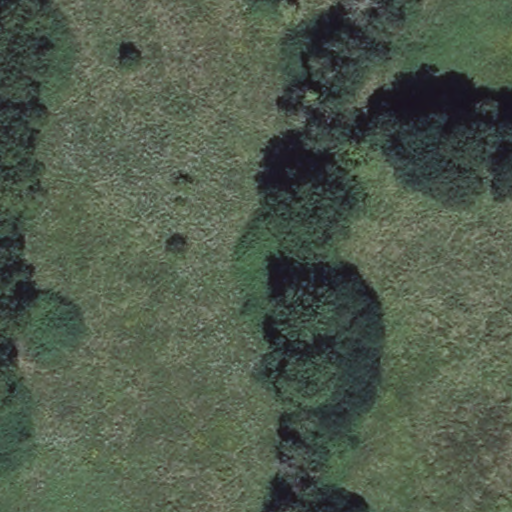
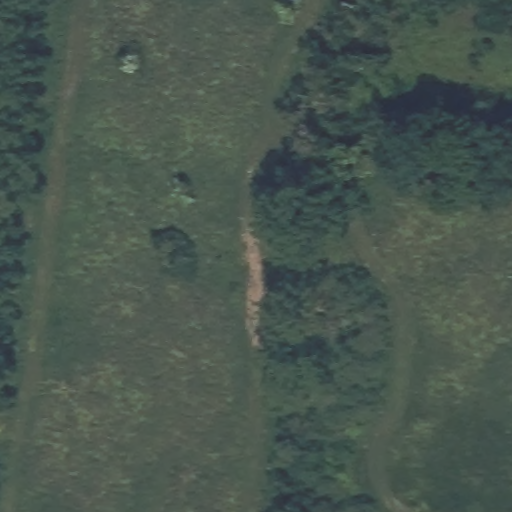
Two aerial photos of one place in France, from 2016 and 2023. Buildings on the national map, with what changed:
[]

